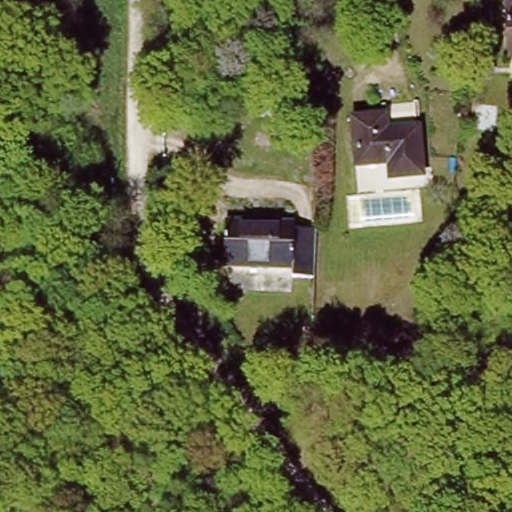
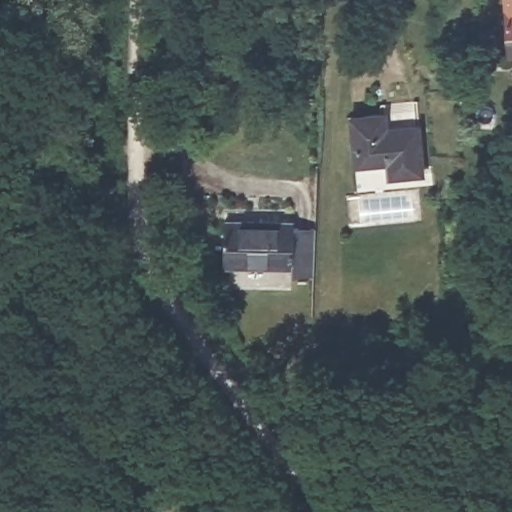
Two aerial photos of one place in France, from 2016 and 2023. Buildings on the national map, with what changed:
unchanged [(512,0),(512,56),(510,56),(506,0),(512,0)]
unchanged [(390,108),(393,123),(417,121),(420,166),(390,166),(390,154),(359,157),(356,109),(390,108)]
unchanged [(292,270),(291,261),(227,260),(227,213),(294,214),(294,236),(316,237),(315,272),(292,270)]

